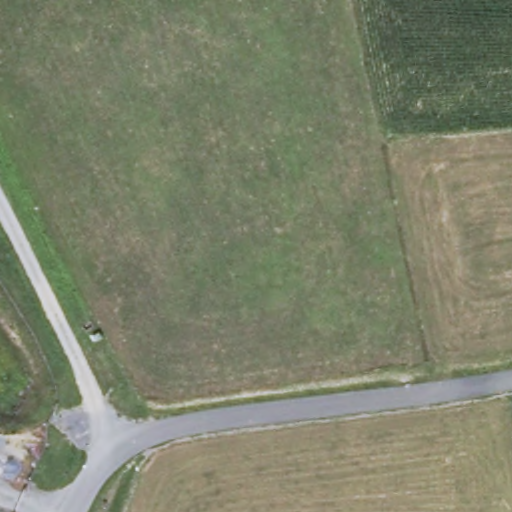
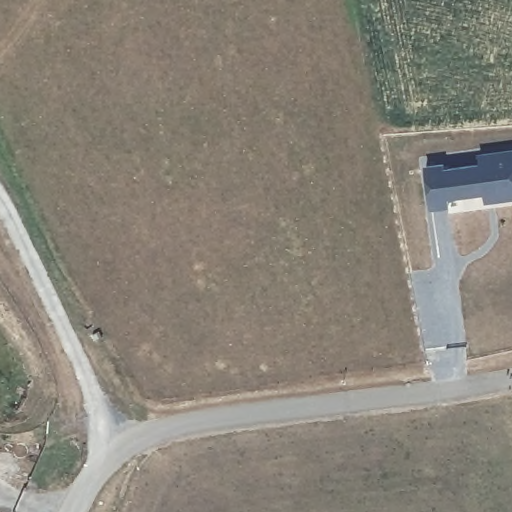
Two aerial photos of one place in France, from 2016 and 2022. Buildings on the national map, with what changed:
new [(442,161),(443,170),(480,165),(479,156),(512,151),(512,198),(485,202),(484,193),(447,198),(448,207),(431,209),(425,163),(442,161)]

